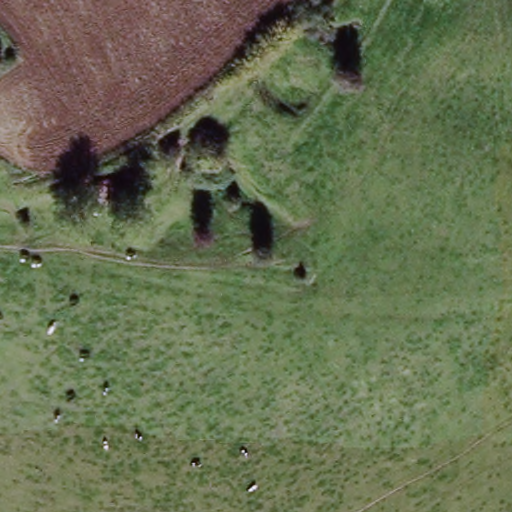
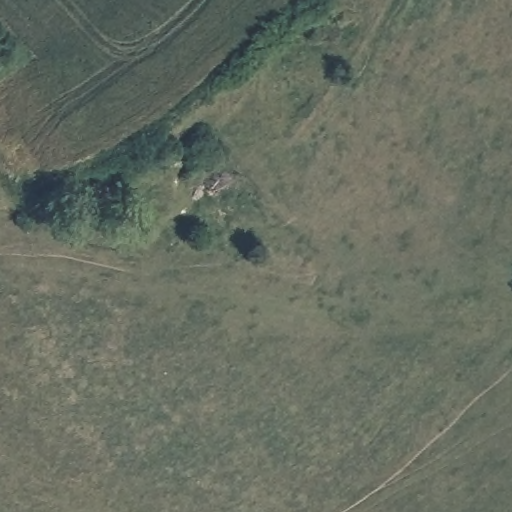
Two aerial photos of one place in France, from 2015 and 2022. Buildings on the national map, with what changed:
unchanged [(114,199),(98,204),(90,184),(108,178),(114,199)]

